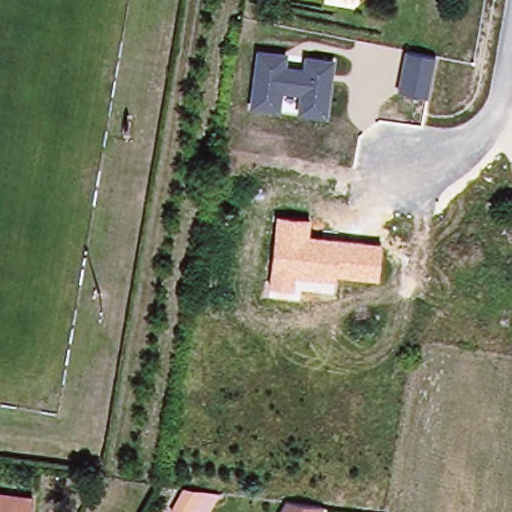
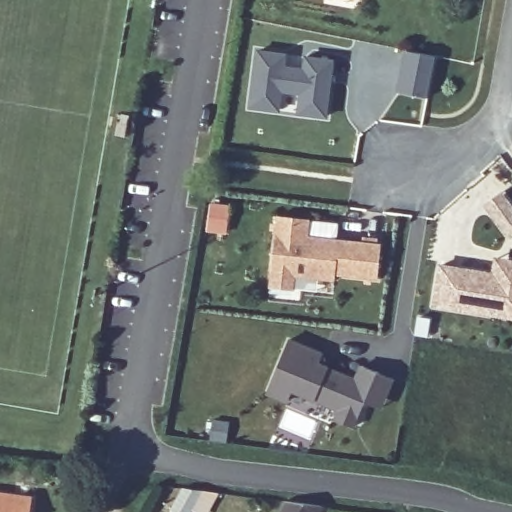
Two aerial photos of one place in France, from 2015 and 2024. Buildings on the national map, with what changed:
unchanged [(287,51),(286,64),(302,65),(303,54),(336,59),(327,117),(297,112),(298,95),(283,94),(280,112),(251,108),(257,49),(287,51)]
unchanged [(435,55),(427,97),(397,91),(405,50),(435,55)]
new [(501,193),(512,208),(512,234),(509,236),(486,205),(501,193)]
new [(222,233),(204,230),(207,204),(227,207),(222,233)]
unchanged [(311,218),(310,236),(382,242),(378,280),(338,275),(337,281),(297,278),(295,290),(270,287),(276,215),(311,218)]
new [(440,264),(492,272),(493,256),(512,259),(512,318),(432,306),(440,264)]
new [(323,352),(320,363),(352,377),(358,363),(394,377),(382,408),(367,402),(356,428),(332,418),(335,410),(291,391),(286,402),(265,393),(287,336),(323,352)]
unchanged [(203,492),(192,512),(170,512),(169,511),(182,488),(203,492)]
unchanged [(0,499),(27,502),(26,512),(0,512),(0,499)]
unchanged [(325,507),(322,512),(281,512),(286,504),(325,507)]

